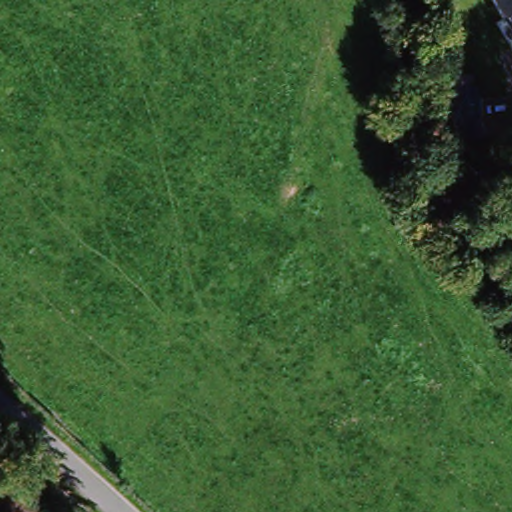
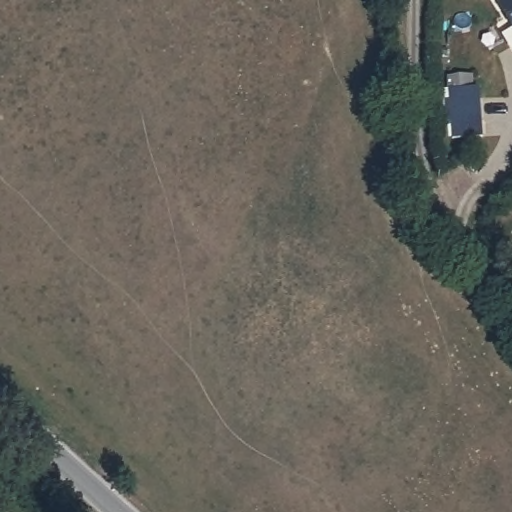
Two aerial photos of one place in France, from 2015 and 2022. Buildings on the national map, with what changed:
unchanged [(489,0),(512,0),(512,37),(489,0)]
new [(472,74),(475,86),(480,85),(482,136),(444,139),(439,89),(447,88),(445,76),(472,74)]

